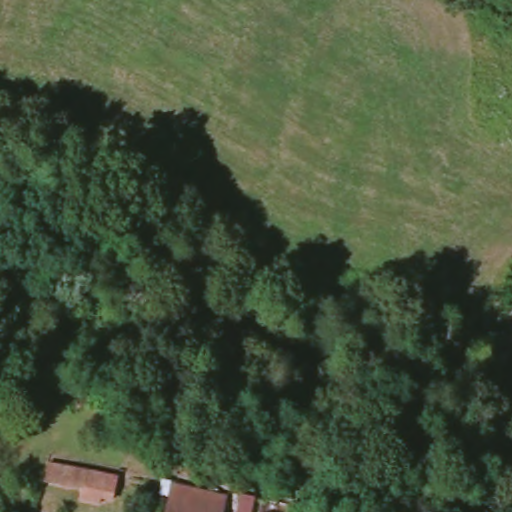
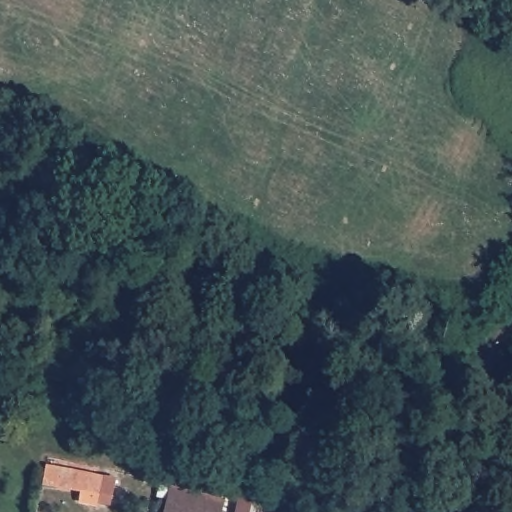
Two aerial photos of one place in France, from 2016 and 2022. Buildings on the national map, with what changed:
unchanged [(109,508),(76,502),(78,491),(39,483),(43,463),(116,476),(109,508)]
unchanged [(190,492),(225,499),(223,506),(222,512),(184,512),(190,492)]

